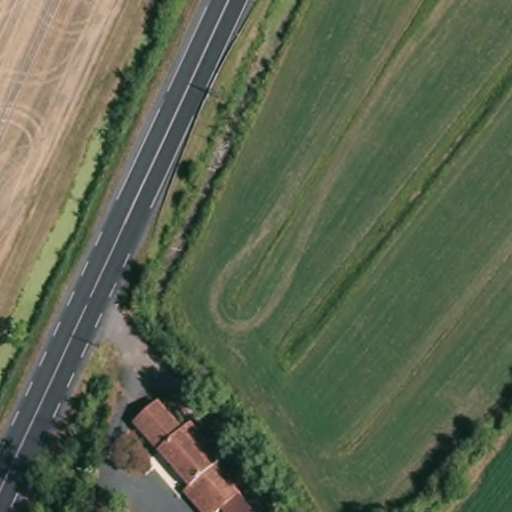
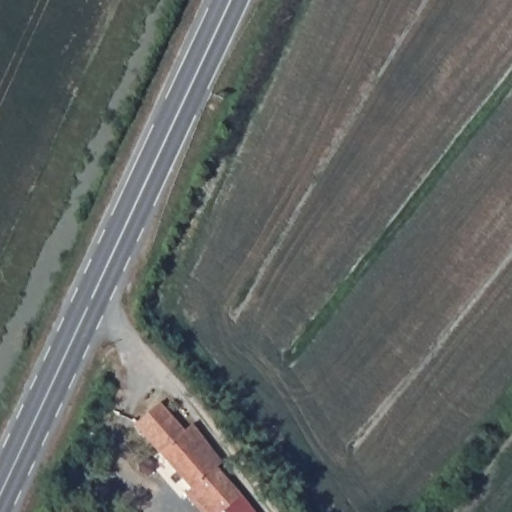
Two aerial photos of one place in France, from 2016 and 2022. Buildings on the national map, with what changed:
unchanged [(133,428),(159,410),(171,429),(178,423),(217,475),(211,480),(221,495),(233,512),(193,512),(181,496),(133,428)]

